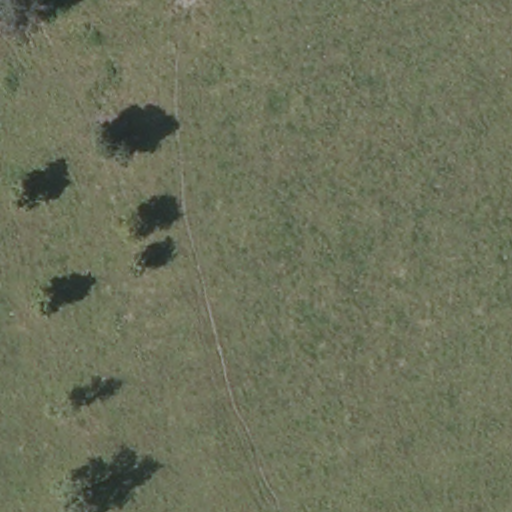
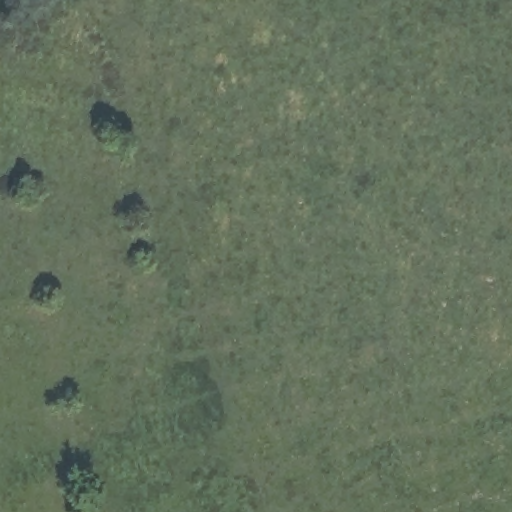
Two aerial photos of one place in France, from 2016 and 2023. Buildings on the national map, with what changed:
[]

